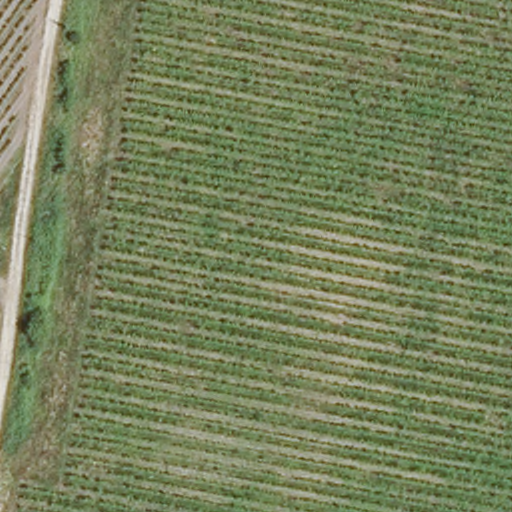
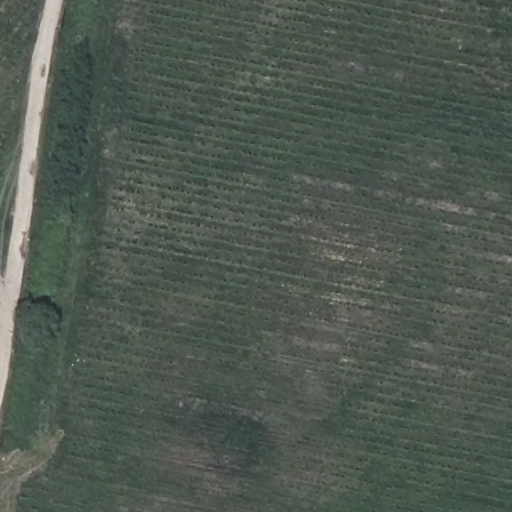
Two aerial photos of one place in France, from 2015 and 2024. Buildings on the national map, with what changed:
[]

